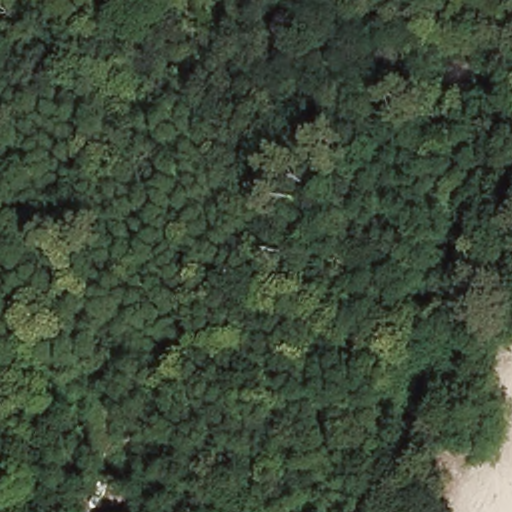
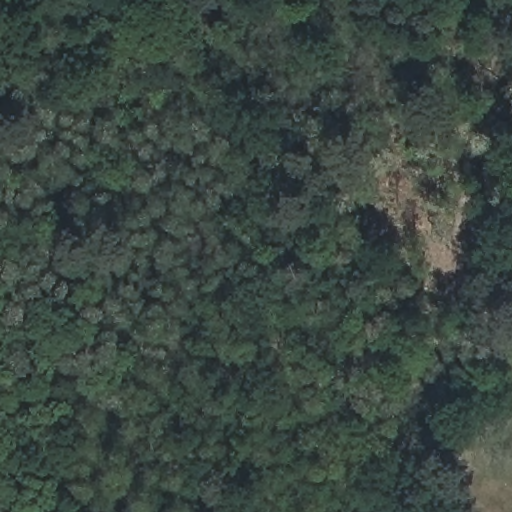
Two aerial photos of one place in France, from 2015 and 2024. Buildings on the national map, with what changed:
[]

